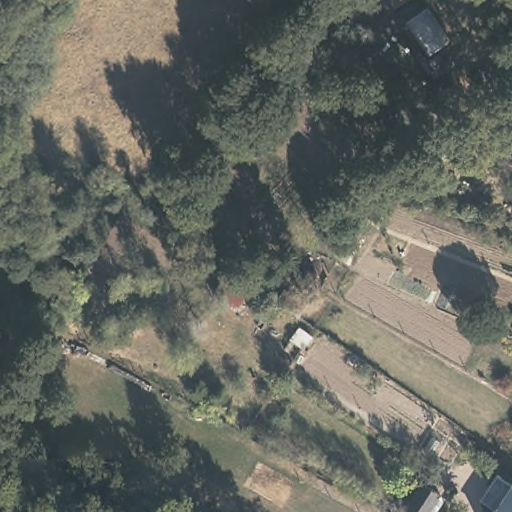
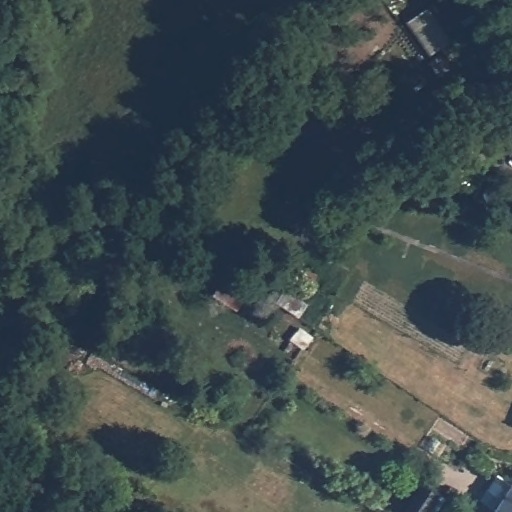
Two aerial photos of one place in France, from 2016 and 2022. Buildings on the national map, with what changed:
unchanged [(512,94),(512,118),(501,101),(512,94)]
unchanged [(497,116),(483,125),(475,111),(488,103),(497,116)]
unchanged [(512,481),(512,512),(492,512),(494,509),(480,499),(496,474),(510,484),(512,481)]
unchanged [(435,498),(426,512),(401,512),(418,487),(435,498)]

